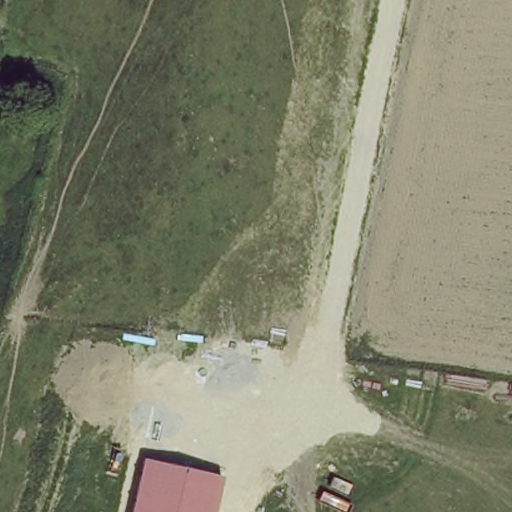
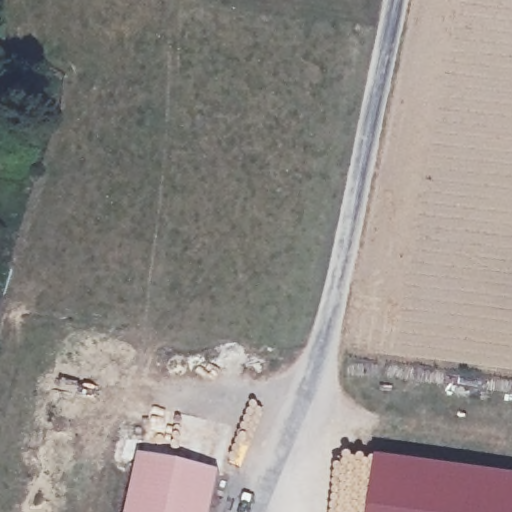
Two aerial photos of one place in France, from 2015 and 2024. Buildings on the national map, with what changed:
unchanged [(128,512),(140,457),(219,476),(211,512),(128,512)]
new [(371,512),(378,463),(512,481),(512,512),(371,512)]

